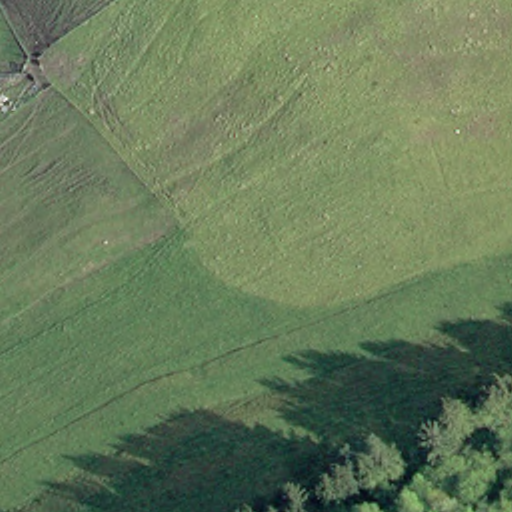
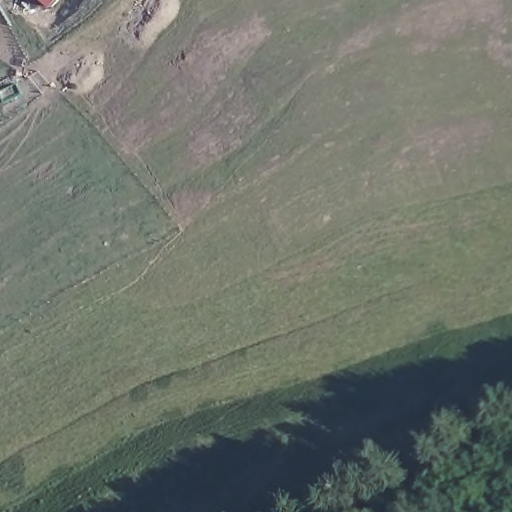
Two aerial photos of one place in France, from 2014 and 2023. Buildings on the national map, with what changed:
new [(38,0),(57,0),(49,10),(38,0)]

